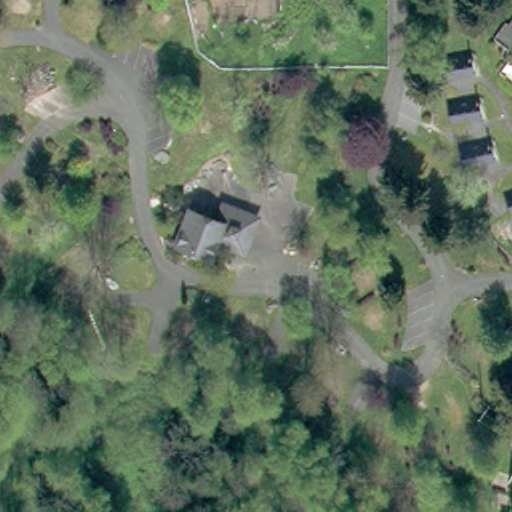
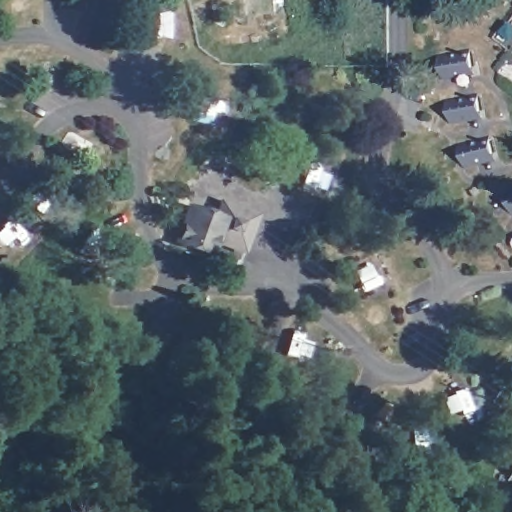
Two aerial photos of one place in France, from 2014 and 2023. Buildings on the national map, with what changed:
unchanged [(475,75),(445,81),(441,59),(471,52),(475,75)]
unchanged [(483,119),(453,126),(449,102),(478,96),(483,119)]
unchanged [(496,164),(466,170),(461,147),(491,141),(496,164)]
unchanged [(216,192),(246,204),(234,234),(205,224),(200,237),(170,227),(182,197),(210,207),(216,192)]
unchanged [(512,192),(512,207),(508,194),(512,192)]
unchanged [(512,502),(512,512),(504,512),(508,501),(512,502)]

